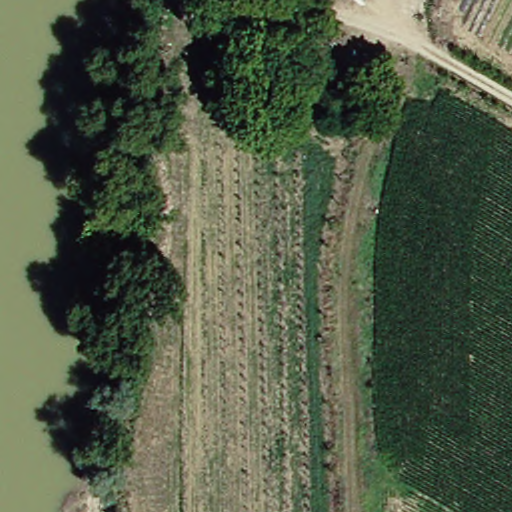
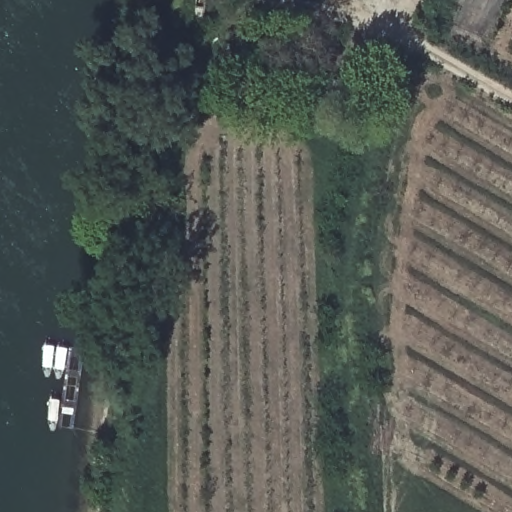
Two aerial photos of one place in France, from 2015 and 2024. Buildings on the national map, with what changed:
[]

